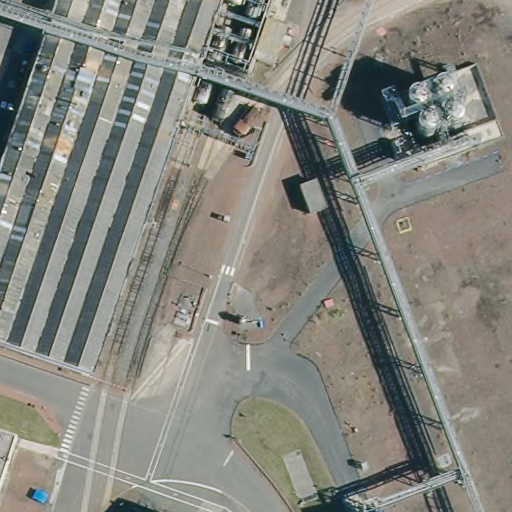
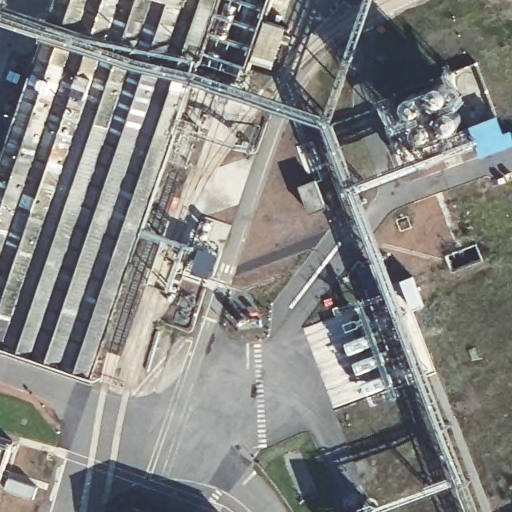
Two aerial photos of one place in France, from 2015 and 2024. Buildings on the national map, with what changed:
unchanged [(91,375),(0,343),(0,165),(57,0),(220,0),(91,375)]
unchanged [(290,19),(274,14),(279,0),(297,0),(290,19)]
unchanged [(291,25),(279,62),(259,56),(272,19),(291,25)]
unchanged [(391,94),(444,74),(459,129),(410,145),(391,94)]
unchanged [(0,492),(0,440),(15,445),(0,492)]
unchanged [(381,512),(379,512),(380,511),(381,512)]

